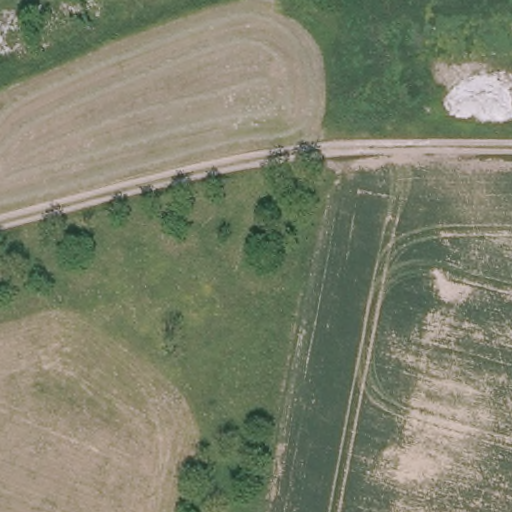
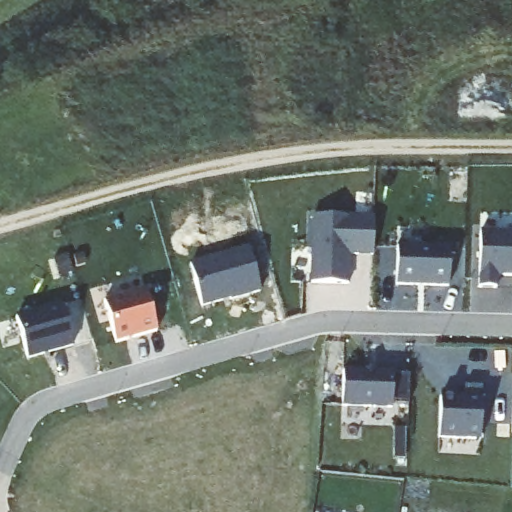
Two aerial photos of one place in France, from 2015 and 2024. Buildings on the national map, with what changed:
new [(372,256),(350,256),(348,285),(308,284),(311,217),(373,218),(372,256)]
new [(496,289),(478,289),(480,231),(512,232),(512,277),(498,277),(496,289)]
new [(397,243),(449,245),(448,283),(395,281),(397,243)]
new [(260,291),(203,309),(188,267),(248,248),(260,291)]
new [(145,289),(157,332),(115,344),(103,301),(145,289)]
demolished [(212,318),(191,321),(186,294),(207,290),(212,318)]
new [(27,361),(15,316),(60,303),(73,347),(27,361)]
new [(393,372),(393,378),(407,378),(407,404),(392,403),(392,409),(342,408),(343,371),(393,372)]
new [(463,396),(464,383),(481,384),(480,437),(438,435),(439,395),(463,396)]

